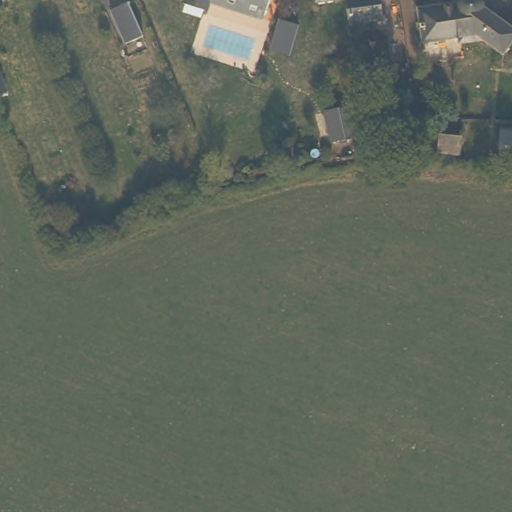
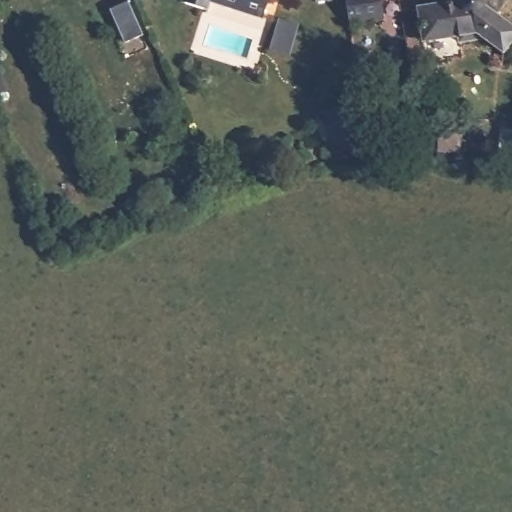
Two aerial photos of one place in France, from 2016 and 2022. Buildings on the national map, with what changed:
unchanged [(212,3),(203,0),(213,0),(212,3)]
unchanged [(267,6),(250,0),(269,0),(267,6)]
unchanged [(382,15),(352,20),(348,0),(380,0),(382,15)]
unchanged [(456,0),(502,0),(497,8),(512,23),(512,39),(505,47),(485,35),(463,39),(462,31),(425,36),(421,7),(456,0)]
unchanged [(132,7),(147,44),(127,52),(113,17),(132,7)]
unchanged [(352,122),(353,139),(336,141),(333,125),(352,122)]
unchanged [(445,158),(449,126),(471,129),(467,162),(462,161),(462,169),(444,167),(445,158)]

